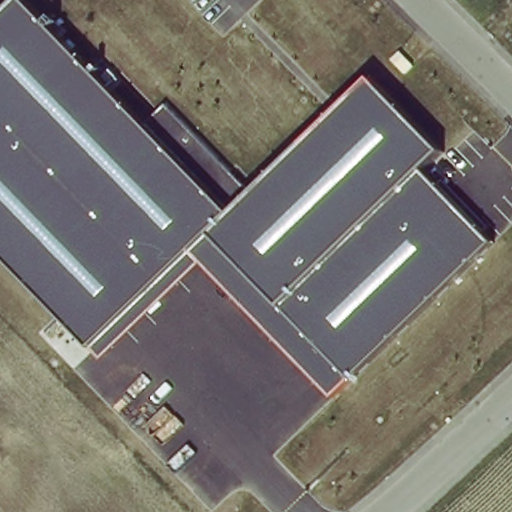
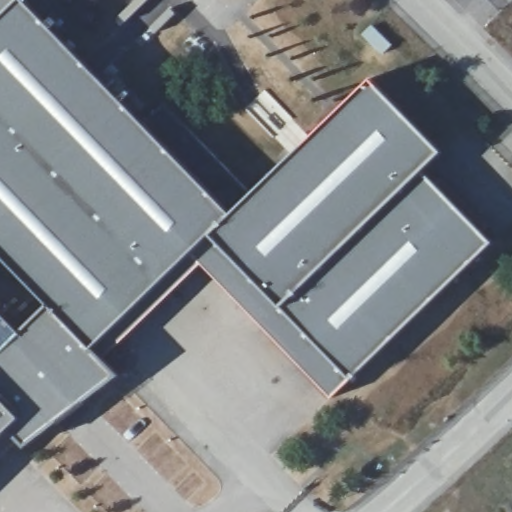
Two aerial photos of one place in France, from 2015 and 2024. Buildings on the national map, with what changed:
new [(0,20),(0,0),(21,0),(0,20)]
unchanged [(149,130),(174,106),(255,190),(373,79),(445,150),(425,170),(493,241),(337,397),(206,262),(107,361),(0,251),(0,20),(21,0),(26,0),(149,130)]
new [(0,434),(0,356),(22,332),(52,304),(107,361),(115,374),(22,443),(7,427),(0,434)]

